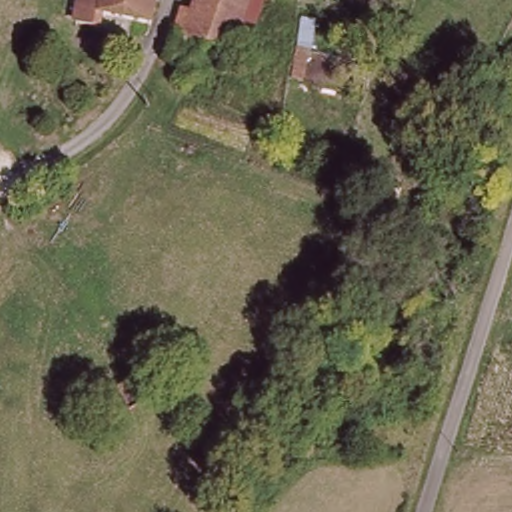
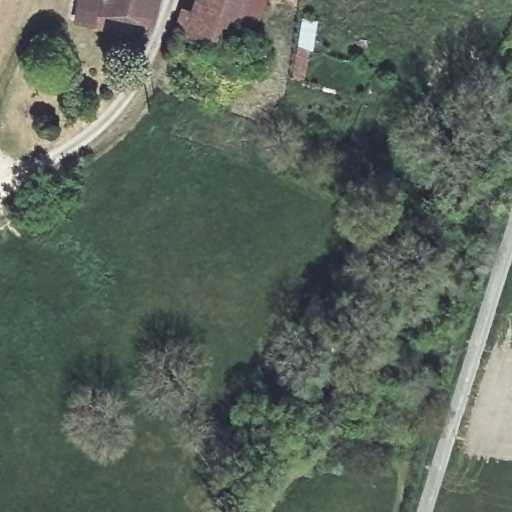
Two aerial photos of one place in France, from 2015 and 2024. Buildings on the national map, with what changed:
unchanged [(152,30),(104,15),(99,31),(76,24),(81,0),(160,0),(152,30)]
unchanged [(180,32),(171,29),(180,6),(196,12),(201,0),(268,0),(267,2),(244,59),(230,54),(180,32)]

